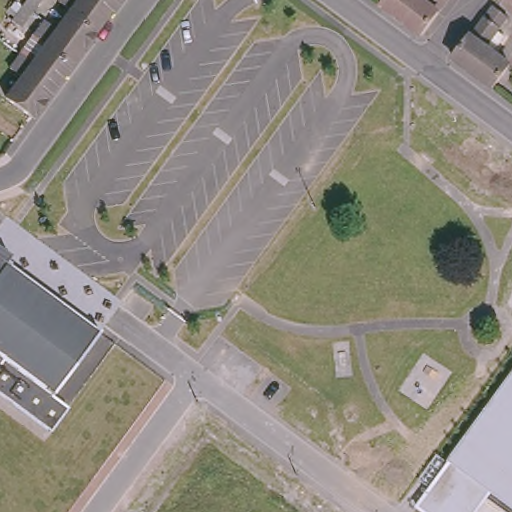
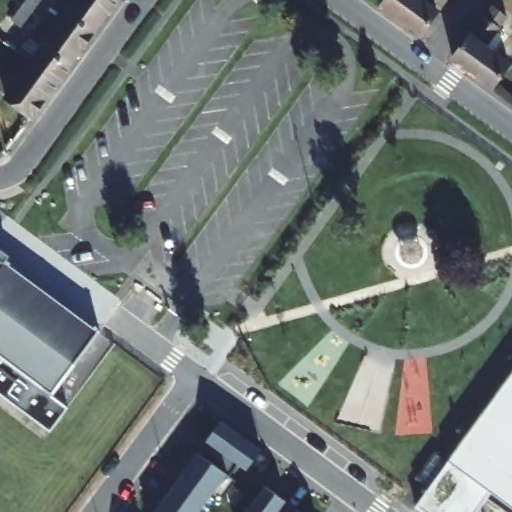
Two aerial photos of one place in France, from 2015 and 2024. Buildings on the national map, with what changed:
unchanged [(22,8),(28,0),(43,0),(32,15),(23,28),(13,21),(22,8)]
unchanged [(75,1),(73,0),(103,0),(111,6),(99,22),(87,40),(60,21),(75,1)]
unchanged [(111,6),(103,0),(115,0),(111,6)]
unchanged [(435,12),(437,14),(426,28),(420,37),(381,8),(387,0),(418,0),(422,3),(425,0),(445,0),(435,12)]
unchanged [(495,31),(502,37),(491,53),(507,64),(490,88),(474,76),(451,59),(467,37),(468,38),(492,6),(506,16),(495,31)]
unchanged [(50,35),(38,27),(48,13),(60,21),(87,40),(62,74),(37,57),(35,56),(50,35)]
unchanged [(37,109),(10,90),(25,70),(13,62),(23,48),(35,56),(37,57),(62,74),(37,109)]
unchanged [(102,331),(102,336),(67,383),(58,394),(17,365),(7,357),(0,352),(0,256),(102,331)]
unchanged [(64,418),(54,431),(0,390),(0,367),(7,357),(17,365),(58,394),(73,405),(64,418)]
unchanged [(476,512),(423,512),(416,507),(448,462),(512,373),(512,508),(490,492),(476,512)]
new [(261,451),(245,471),(237,463),(227,476),(233,480),(220,501),(213,495),(201,512),(156,512),(222,421),(261,451)]
new [(302,512),(248,512),(266,486),(302,512)]

